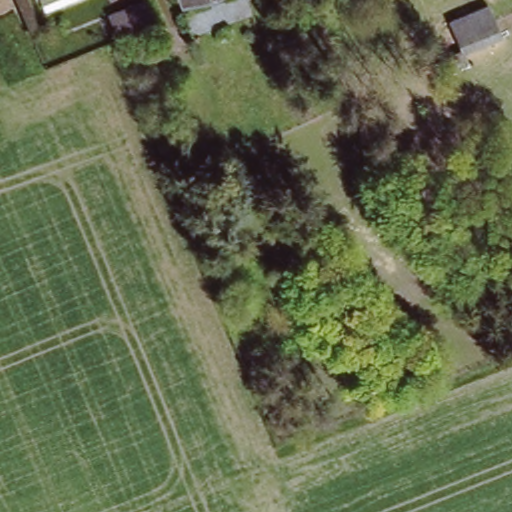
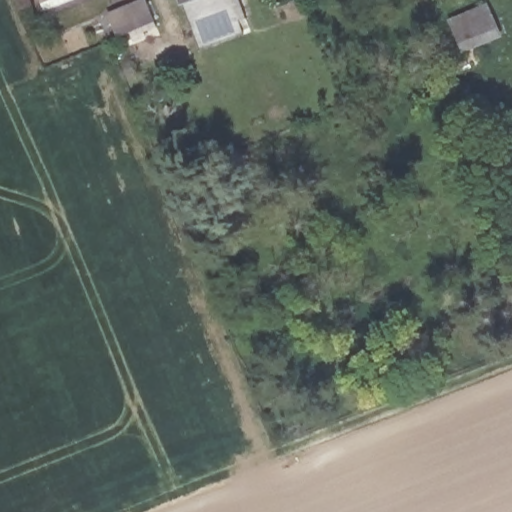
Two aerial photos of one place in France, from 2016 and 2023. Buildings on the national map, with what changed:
unchanged [(41,0),(74,0),(45,10),(41,0)]
unchanged [(186,0),(202,0),(188,5),(186,0)]
unchanged [(156,21),(119,39),(110,15),(147,1),(156,21)]
unchanged [(491,6),(502,40),(468,54),(471,67),(445,75),(440,57),(459,50),(452,20),(491,6)]

